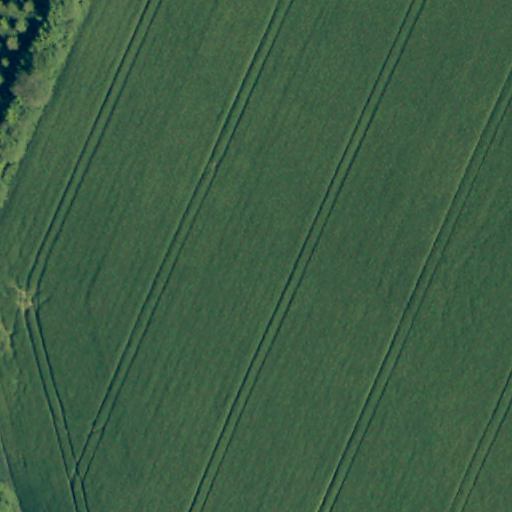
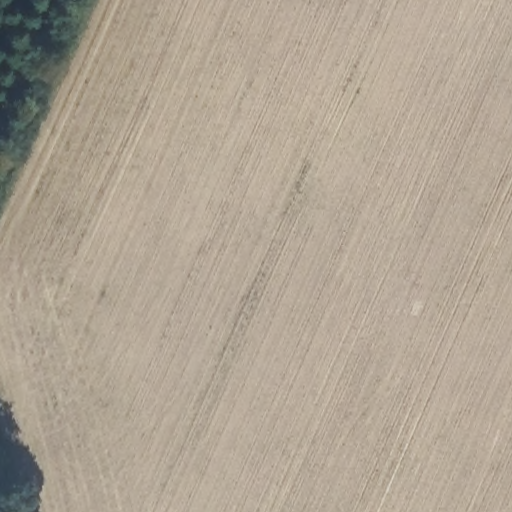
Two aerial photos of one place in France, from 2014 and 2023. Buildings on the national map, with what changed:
[]

